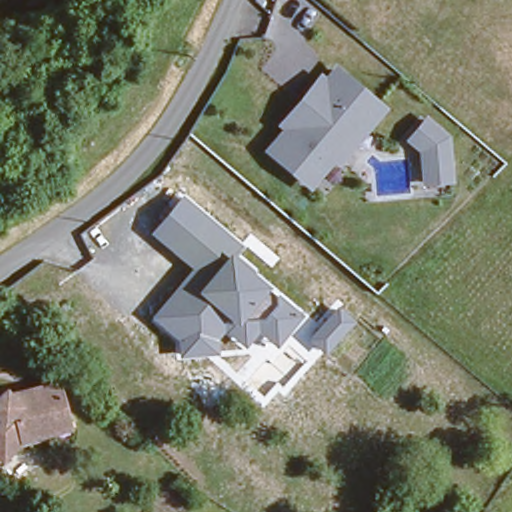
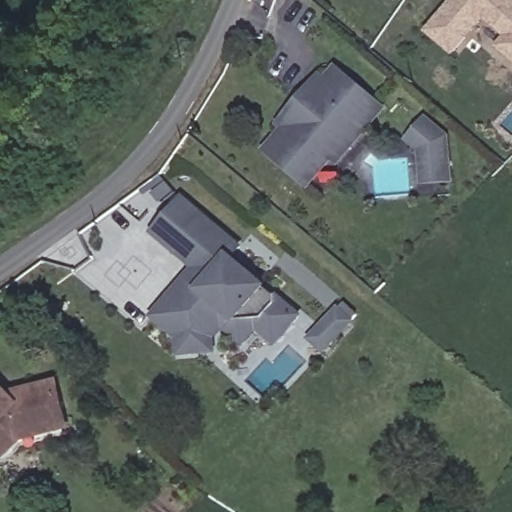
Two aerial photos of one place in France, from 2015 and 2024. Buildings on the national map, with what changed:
new [(495,44),(505,33),(480,14),(450,49),(425,29),(449,0),(512,0),(512,58),(495,44)]
unchanged [(267,153),(285,129),(278,124),(320,74),(328,80),(337,66),(390,110),(342,167),(336,161),(311,190),(267,153)]
unchanged [(420,153),(406,142),(427,116),(451,135),(456,184),(422,187),(420,153)]
unchanged [(184,197),(244,247),(235,258),(272,288),(305,314),(280,348),(259,332),(246,349),(225,332),(217,340),(218,357),(179,358),(177,338),(152,319),(194,268),(154,235),(184,197)]
unchanged [(37,430),(25,433),(2,454),(0,452),(0,390),(4,386),(7,392),(27,387),(57,380),(65,414),(67,423),(37,430)]

